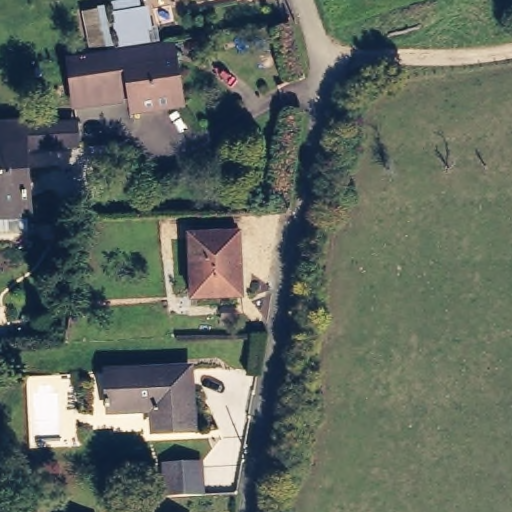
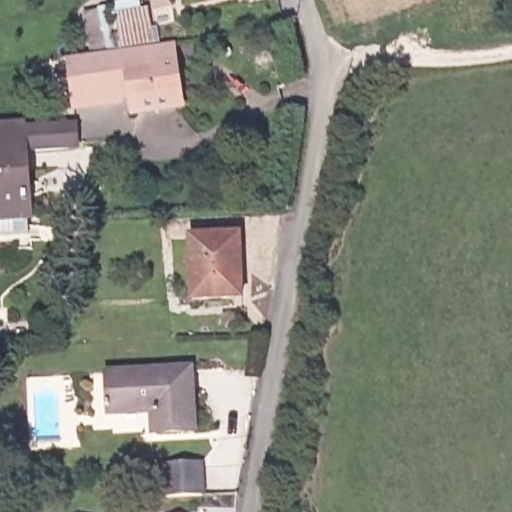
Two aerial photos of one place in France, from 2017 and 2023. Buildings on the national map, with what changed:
unchanged [(63,57),(87,53),(80,15),(154,6),(159,45),(180,39),(189,117),(133,123),(129,103),(71,111),(63,57)]
unchanged [(30,141),(0,144),(0,124),(74,117),(76,148),(30,151),(30,141)]
unchanged [(0,239),(0,144),(30,141),(30,151),(36,237),(0,239)]
unchanged [(192,301),(189,236),(239,234),(241,274),(241,299),(236,299),(192,301)]
unchanged [(113,367),(196,362),(198,422),(159,423),(158,403),(115,404),(113,367)]
unchanged [(196,461),(198,492),(162,494),(161,463),(196,461)]

